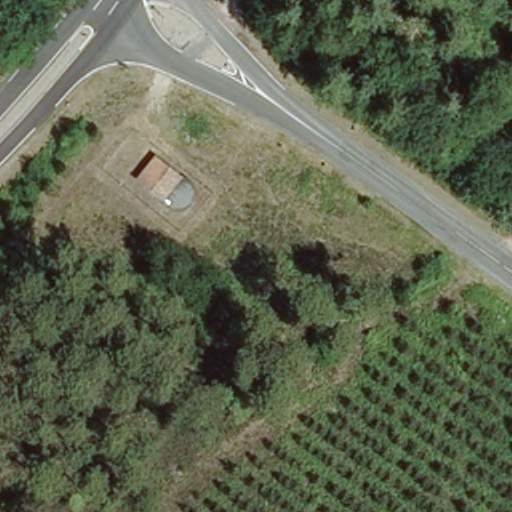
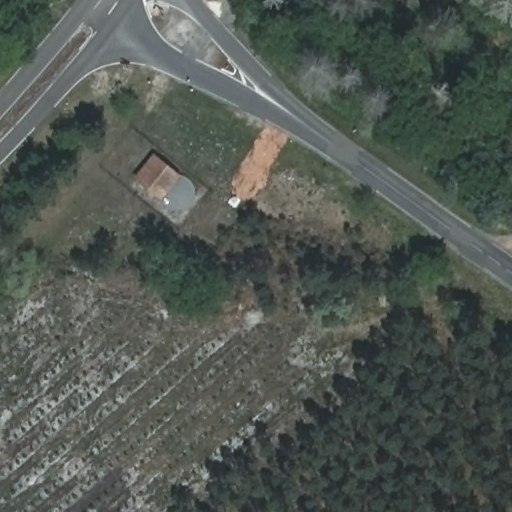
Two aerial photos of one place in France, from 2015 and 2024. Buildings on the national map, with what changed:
unchanged [(178,174),(161,197),(134,177),(153,153),(178,174)]

